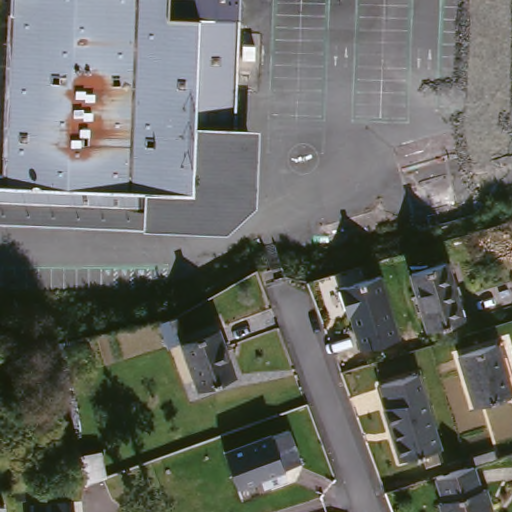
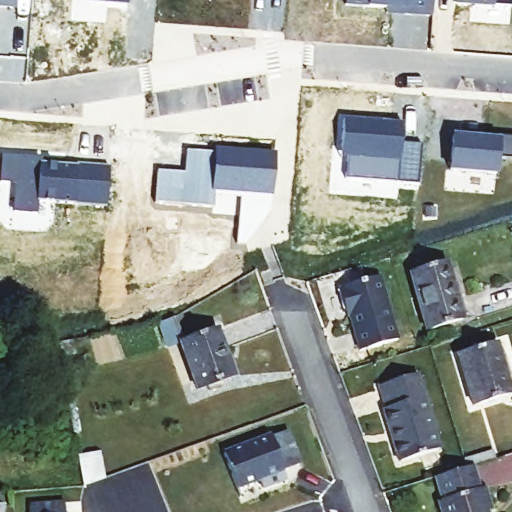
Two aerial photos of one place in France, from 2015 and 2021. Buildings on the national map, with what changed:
demolished [(204,224),(183,206),(0,201),(0,2),(5,2),(5,0),(240,0),(234,143),(231,190),(204,224)]
new [(404,8),(346,3),(346,0),(432,0),(431,15),(410,14),(404,8)]
new [(452,136),(475,138),(476,134),(512,138),(512,158),(498,157),(497,175),(449,171),(452,136)]
demolished [(469,216),(435,228),(415,163),(452,154),(469,216)]
unchanged [(466,315),(431,326),(413,269),(449,258),(466,315)]
unchanged [(382,277),(400,340),(362,351),(350,310),(347,311),(341,289),(382,277)]
unchanged [(240,371),(205,384),(188,337),(225,325),(240,371)]
unchanged [(512,367),(512,386),(481,396),(466,346),(502,334),(512,367)]
unchanged [(443,447),(403,459),(387,407),(390,406),(382,385),(420,373),(443,447)]
unchanged [(273,432),(273,433),(290,427),(301,460),(285,466),(288,476),(265,483),(262,475),(239,483),(227,447),(273,432)]
unchanged [(106,475),(85,482),(81,460),(101,454),(106,475)]
unchanged [(487,488),(493,509),(487,511),(488,512),(445,512),(442,502),(446,501),(437,475),(470,465),(480,461),(487,488)]
unchanged [(8,501),(14,501),(14,512),(0,512),(0,488),(7,487),(8,501)]
unchanged [(30,496),(68,493),(70,511),(80,510),(81,512),(32,512),(30,496)]

